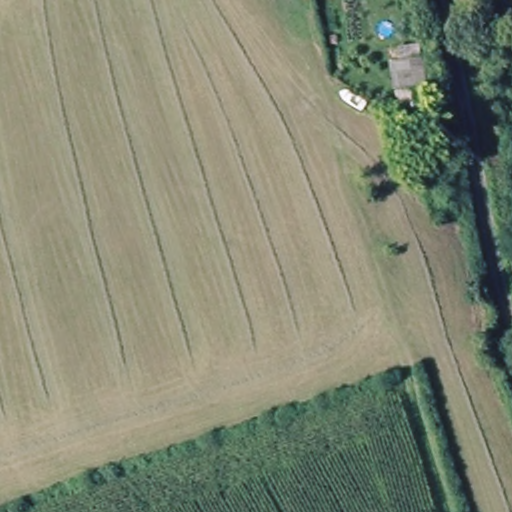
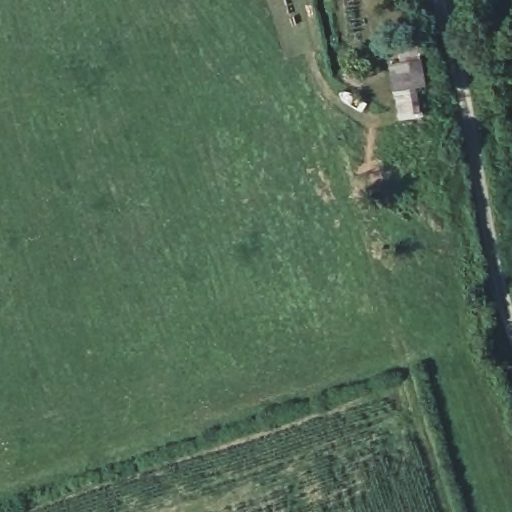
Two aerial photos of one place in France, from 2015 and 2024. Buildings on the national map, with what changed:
unchanged [(428,94),(399,98),(392,57),(421,44),(428,94)]

